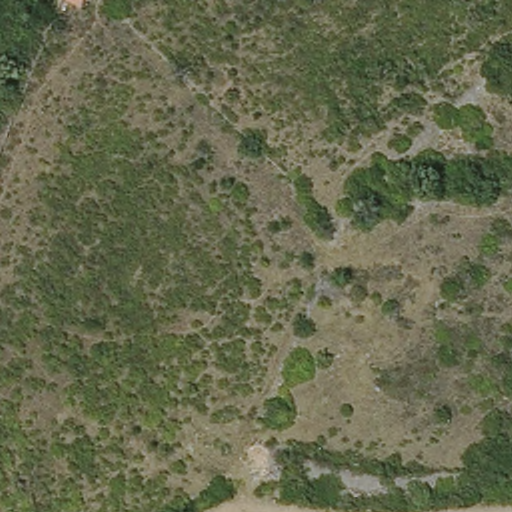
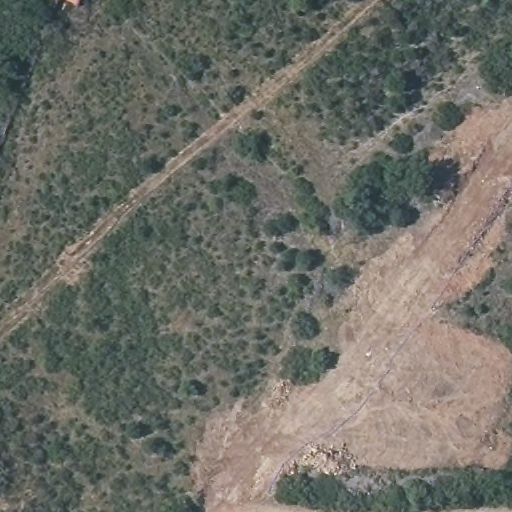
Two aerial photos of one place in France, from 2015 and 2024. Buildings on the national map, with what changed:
unchanged [(78,1),(74,0),(79,0),(78,1)]

